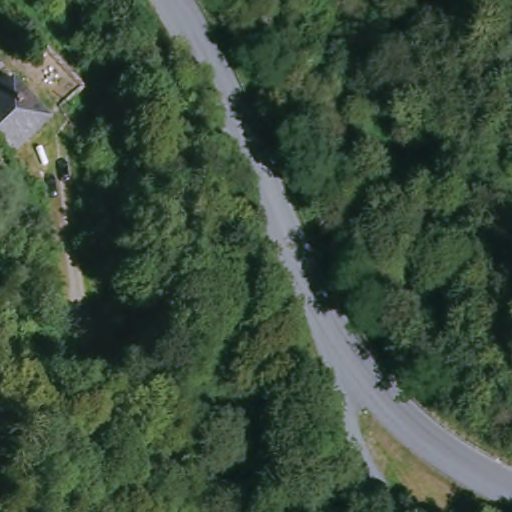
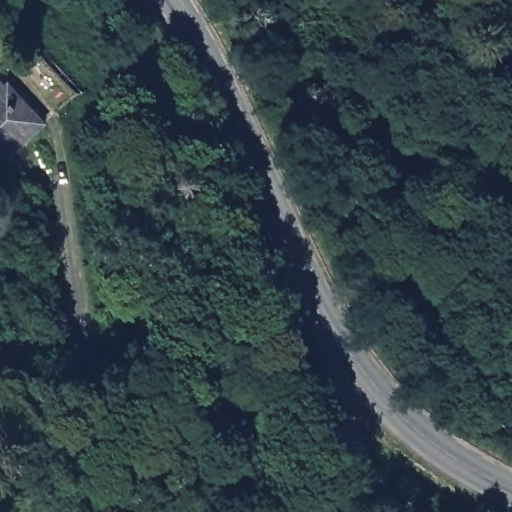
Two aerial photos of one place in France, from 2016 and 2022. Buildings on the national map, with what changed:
unchanged [(5,156),(0,151),(0,78),(41,117),(5,156)]

